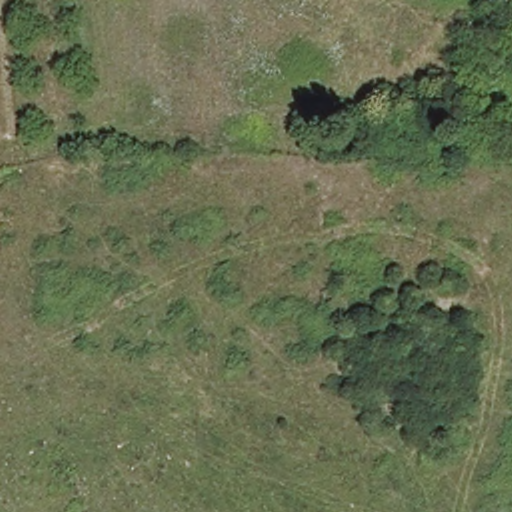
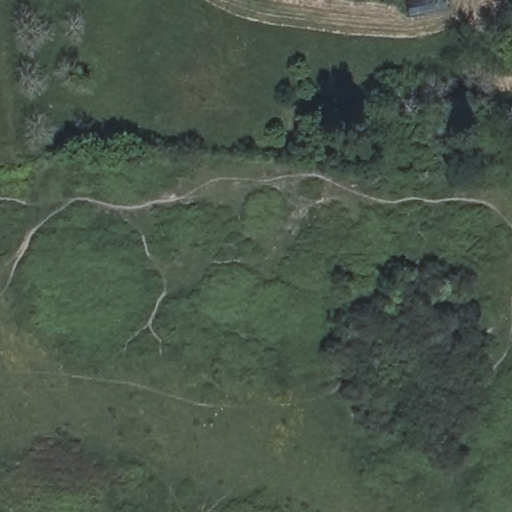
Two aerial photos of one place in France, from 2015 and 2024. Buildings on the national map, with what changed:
[]

